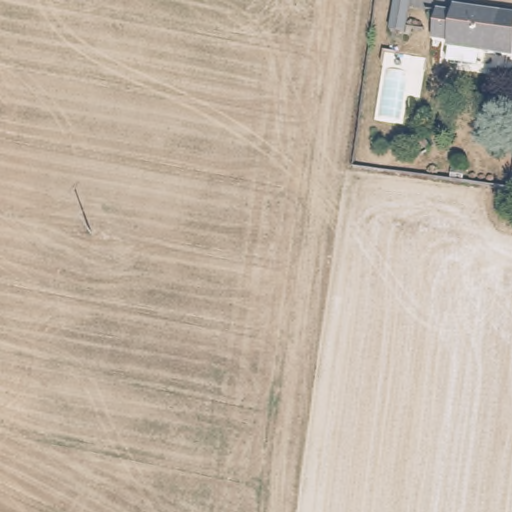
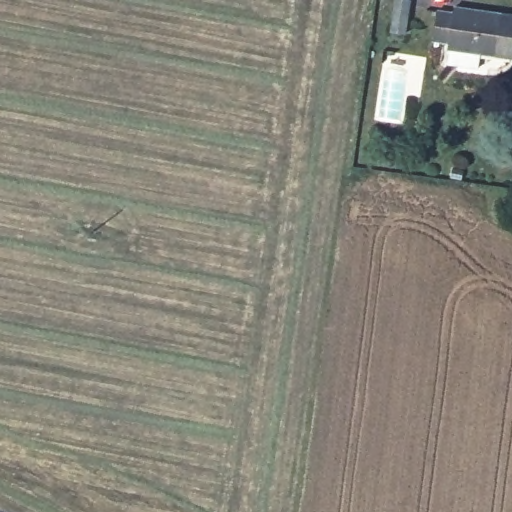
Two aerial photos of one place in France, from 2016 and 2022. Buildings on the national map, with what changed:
unchanged [(386,21),(389,0),(404,0),(401,24),(386,21)]
unchanged [(506,70),(453,62),(452,43),(441,41),(447,10),(460,10),(461,4),(512,13),(512,60),(506,70)]

